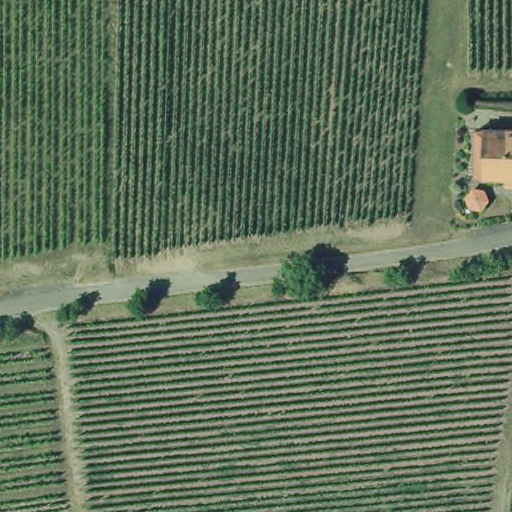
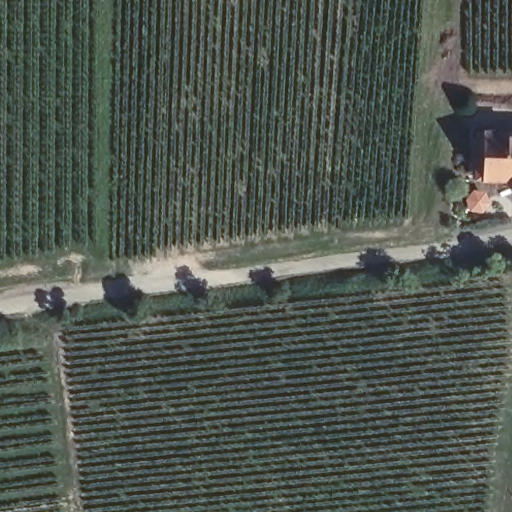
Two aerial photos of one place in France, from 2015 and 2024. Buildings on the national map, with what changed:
unchanged [(478,174),(471,174),(472,127),(479,127),(512,127),(512,183),(503,183),(502,175),(478,174)]

